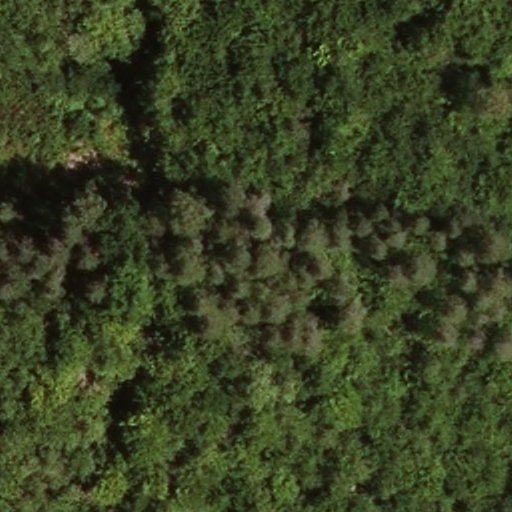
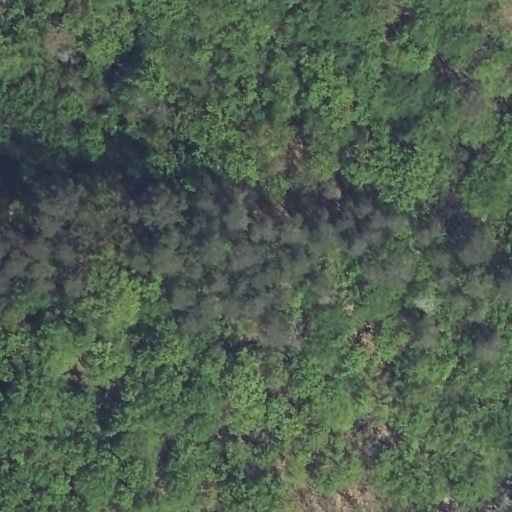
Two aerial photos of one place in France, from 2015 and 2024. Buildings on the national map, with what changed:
[]

